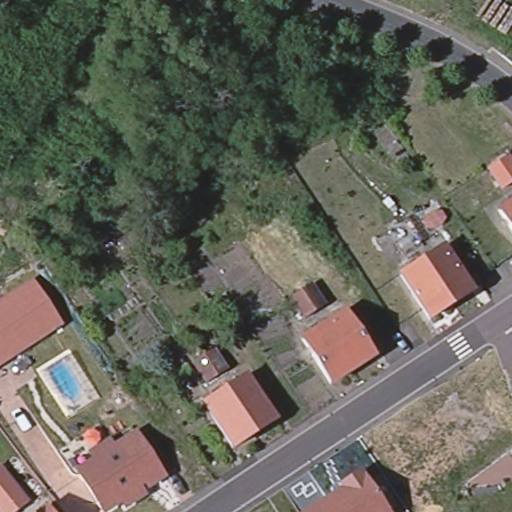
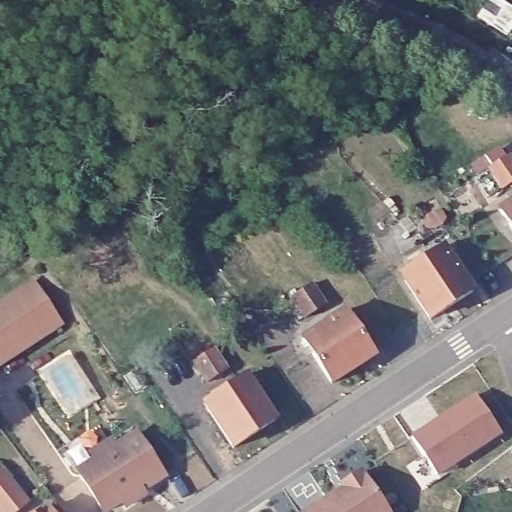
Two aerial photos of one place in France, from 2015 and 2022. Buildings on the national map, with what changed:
unchanged [(299,47),(286,79),(209,51),(221,19),(299,47)]
unchanged [(502,154),(512,169),(512,176),(497,186),(484,167),(502,154)]
unchanged [(512,209),(512,221),(507,212),(512,209)]
unchanged [(407,216),(421,236),(400,250),(387,230),(407,216)]
unchanged [(444,250),(472,295),(434,321),(404,276),(444,250)]
unchanged [(62,324),(0,366),(0,300),(34,278),(62,324)]
unchanged [(307,281),(321,301),(302,313),(288,293),(307,281)]
unchanged [(341,309),(370,353),(328,379),(299,335),(341,309)]
unchanged [(210,345),(222,364),(202,377),(190,358),(210,345)]
unchanged [(246,377),(276,421),(235,447),(207,403),(246,377)]
new [(475,394),(502,436),(437,478),(426,460),(410,436),(475,394)]
unchanged [(89,451),(113,437),(116,442),(137,428),(167,478),(146,489),(149,499),(127,509),(121,504),(107,512),(103,512),(75,472),(93,461),(89,451)]
unchanged [(31,501),(20,512),(0,512),(0,467),(2,465),(31,501)]
unchanged [(365,475),(389,512),(309,512),(333,496),(344,489),(346,482),(359,474),(365,475)]
unchanged [(51,512),(43,512),(47,508),(51,512)]

